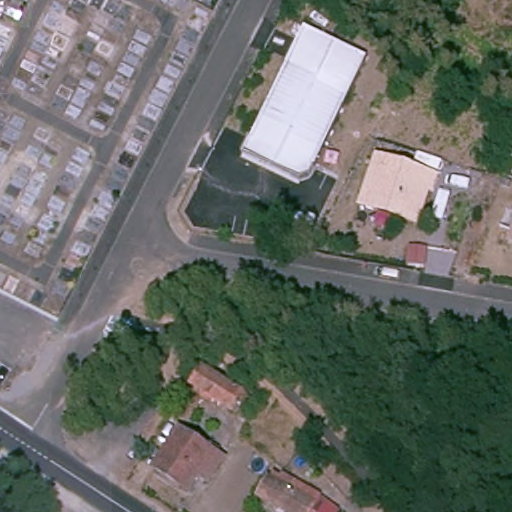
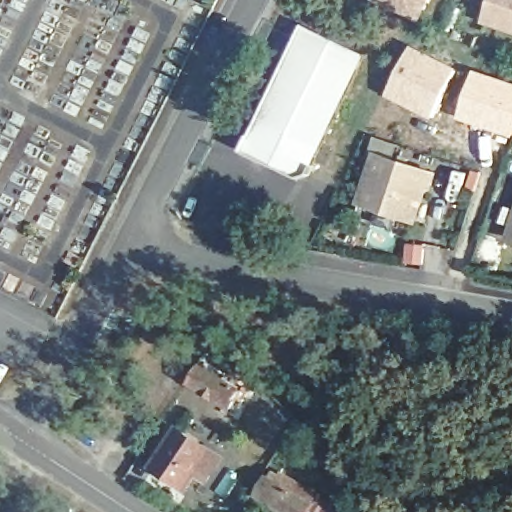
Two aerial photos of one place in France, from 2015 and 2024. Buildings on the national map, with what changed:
new [(380,0),(429,0),(420,19),(380,0)]
new [(490,0),(512,0),(512,32),(482,22),(490,0)]
unchanged [(367,60),(356,83),(307,179),(297,184),(242,154),(295,50),(306,29),(367,60)]
new [(412,44),(457,69),(430,118),(385,94),(412,44)]
new [(512,82),(512,138),(457,119),(475,68),(512,82)]
unchanged [(378,209),(360,204),(377,154),(412,166),(436,174),(432,189),(428,187),(418,217),(416,223),(378,209)]
unchanged [(512,199),(512,234),(501,230),(512,199)]
unchanged [(247,404),(242,401),(233,414),(191,387),(203,367),(252,399),(247,404)]
unchanged [(195,478),(186,492),(160,474),(184,435),(222,461),(213,474),(207,485),(195,478)]
unchanged [(314,512),(283,512),(263,500),(273,481),(283,486),(289,476),(301,481),(295,494),(317,506),(314,512)]

